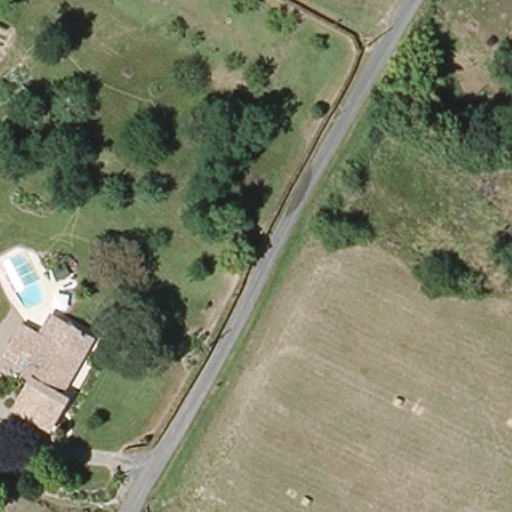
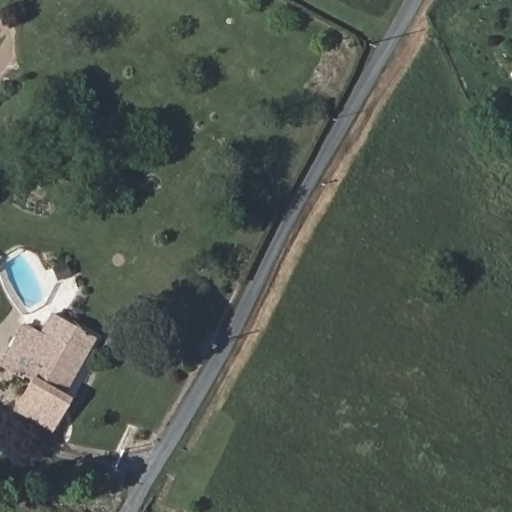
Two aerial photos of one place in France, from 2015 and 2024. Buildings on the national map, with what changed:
unchanged [(60,315),(100,335),(71,394),(76,397),(59,429),(21,409),(36,378),(27,374),(6,363),(26,322),(40,329),(50,334),(60,315)]

